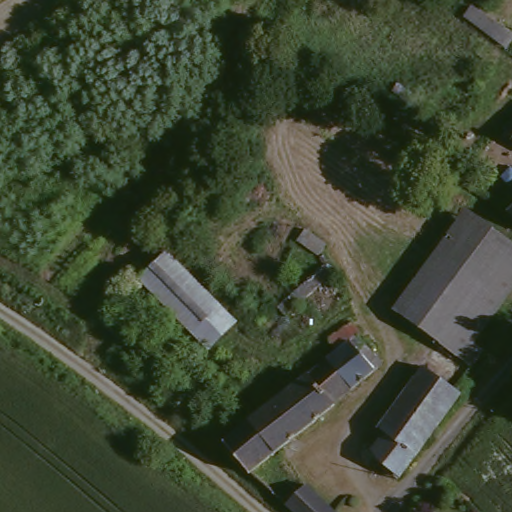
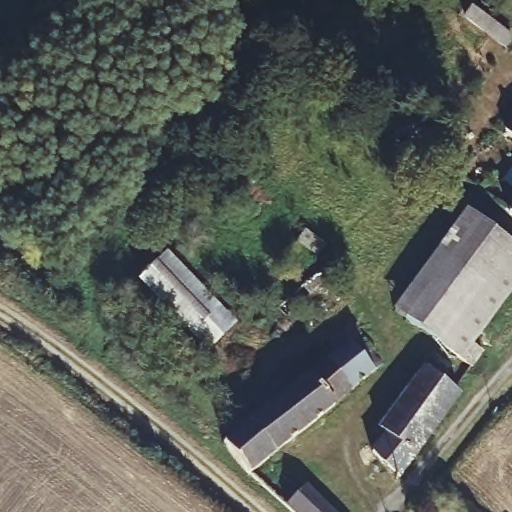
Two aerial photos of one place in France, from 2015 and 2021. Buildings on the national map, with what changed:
unchanged [(507,48),(463,11),(471,0),(474,0),(512,33),(512,44),(507,48)]
unchanged [(502,133),(512,124),(512,144),(502,133)]
unchanged [(509,212),(512,209),(512,215),(509,212)]
unchanged [(398,305),(472,211),(510,240),(482,276),(436,335),(424,325),(398,305)]
unchanged [(328,247),(322,256),(302,243),(308,234),(328,247)]
unchanged [(472,345),(478,351),(470,362),(436,335),(482,276),(510,240),(512,242),(512,295),(472,345)]
unchanged [(214,351),(197,336),(143,284),(170,256),(226,308),(242,322),(214,351)]
unchanged [(327,270),(336,278),(290,316),(282,308),(327,270)]
unchanged [(299,377),(338,347),(331,339),(352,322),(363,334),(357,339),(383,366),(372,374),(255,475),(216,441),(299,377)]
unchanged [(466,393),(392,468),(371,445),(388,425),(381,416),(432,363),(463,390),(466,393)]
unchanged [(332,512),(297,512),(288,504),(308,488),(332,512)]

